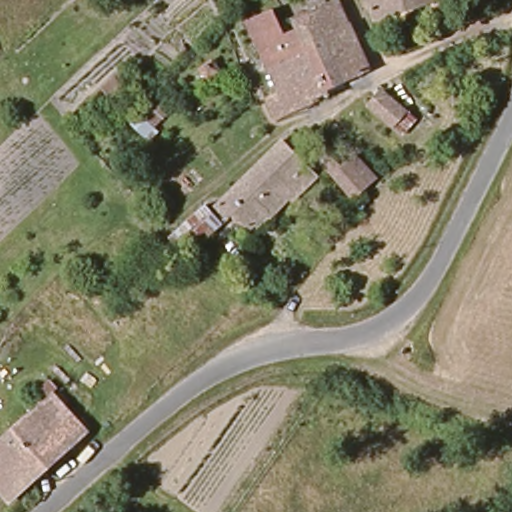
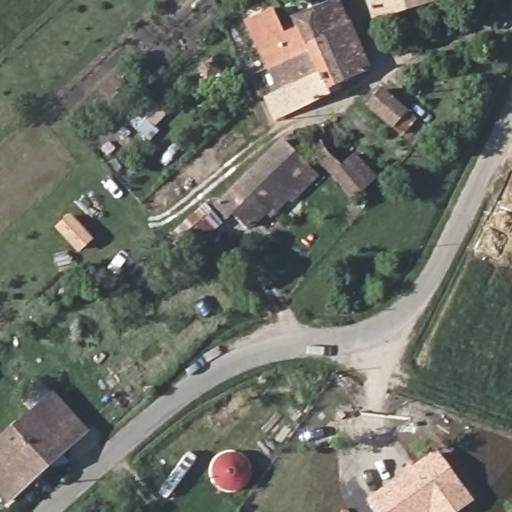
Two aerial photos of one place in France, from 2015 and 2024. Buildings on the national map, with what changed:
unchanged [(385,21),(379,0),(449,0),(385,21)]
unchanged [(291,5),(301,1),(309,17),(345,1),(374,71),(347,82),(327,39),(308,45),(303,31),(299,21),(291,5)]
unchanged [(329,89),(314,56),(272,71),(249,16),(275,5),(288,37),(303,31),(308,45),(327,39),(347,82),(329,89)]
unchanged [(280,92),(272,71),(314,56),(329,89),(332,96),(309,106),(278,121),(268,97),(280,92)]
unchanged [(401,126),(374,102),(388,87),(415,110),(401,126)]
unchanged [(297,201),(280,218),(259,197),(247,208),(235,197),(288,142),(325,178),(300,203),(297,201)]
unchanged [(357,196),(316,149),(325,143),(345,167),(360,156),(378,178),(357,196)]
unchanged [(195,251),(182,238),(210,211),(216,217),(222,223),(195,251)]
unchanged [(0,448),(61,393),(95,431),(17,502),(0,483),(0,448)]
new [(437,448),(475,500),(459,512),(376,512),(366,498),(437,448)]

